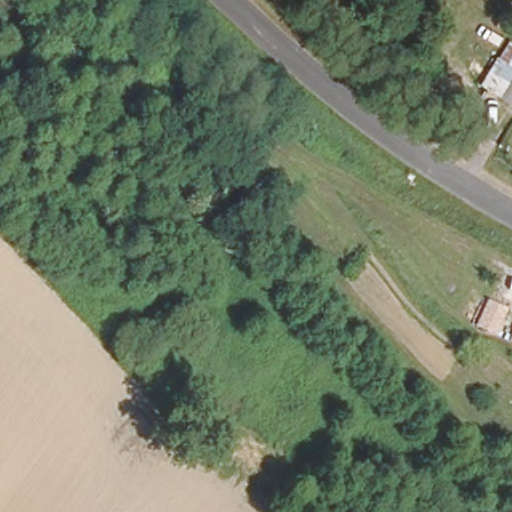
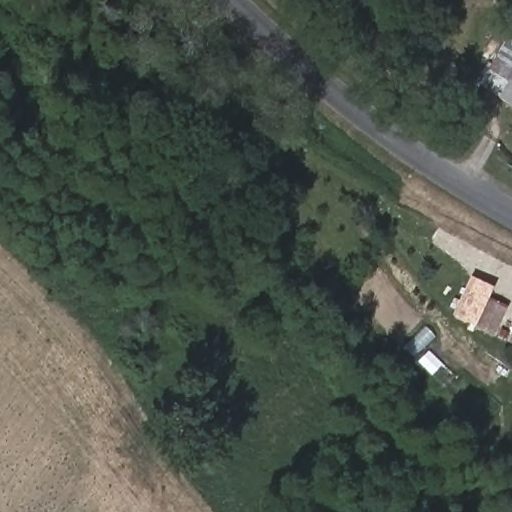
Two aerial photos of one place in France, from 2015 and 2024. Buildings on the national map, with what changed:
unchanged [(495,94),(512,68),(512,106),(495,94)]
unchanged [(181,104),(178,101),(178,95),(186,90),(190,95),(190,102),(186,105),(181,104)]
new [(471,276),(493,287),(489,297),(508,306),(495,336),(452,316),(471,276)]

